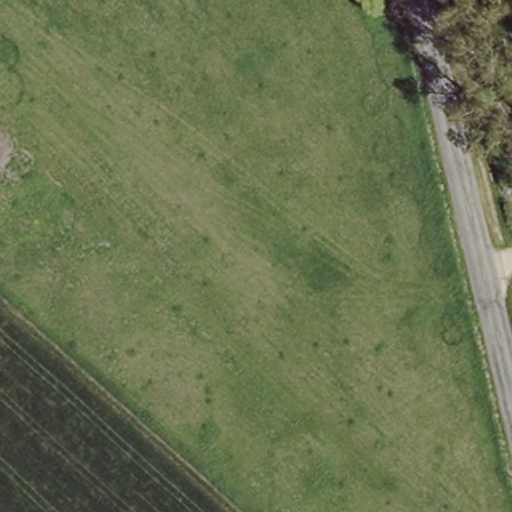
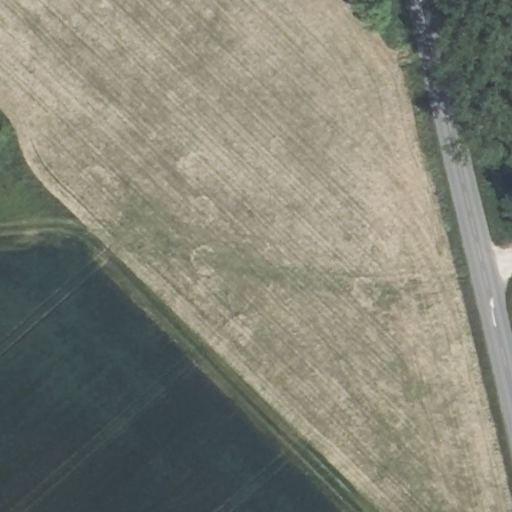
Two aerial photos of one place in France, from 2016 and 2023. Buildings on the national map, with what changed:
[]

